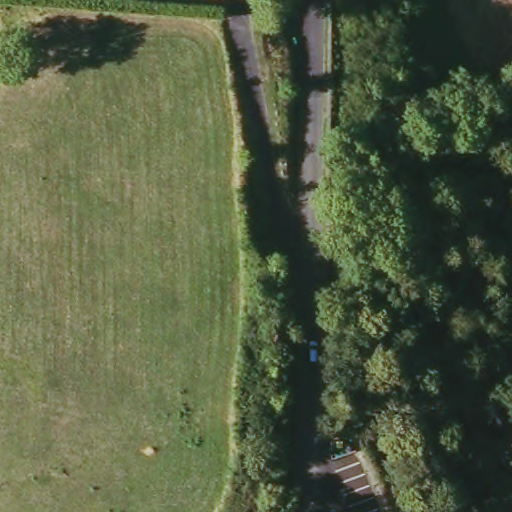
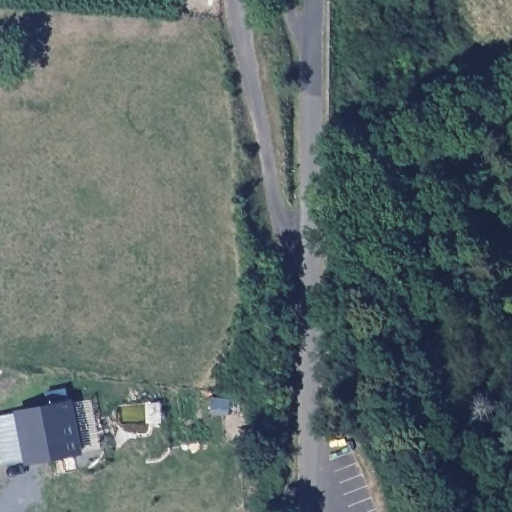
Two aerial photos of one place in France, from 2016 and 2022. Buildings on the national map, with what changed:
new [(0,444),(0,417),(15,414),(15,411),(47,404),(47,394),(67,389),(67,398),(71,398),(85,454),(25,466),(24,459),(4,466),(0,444)]

